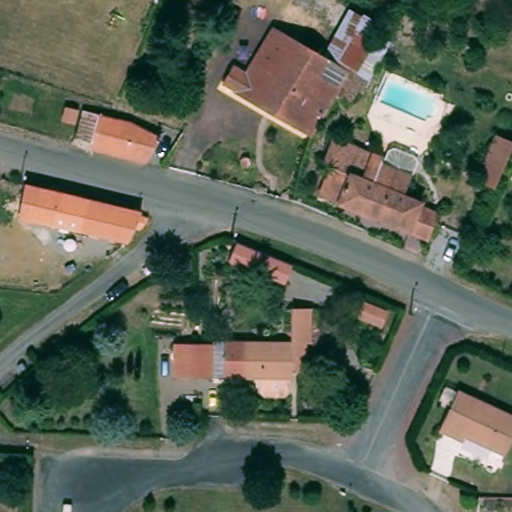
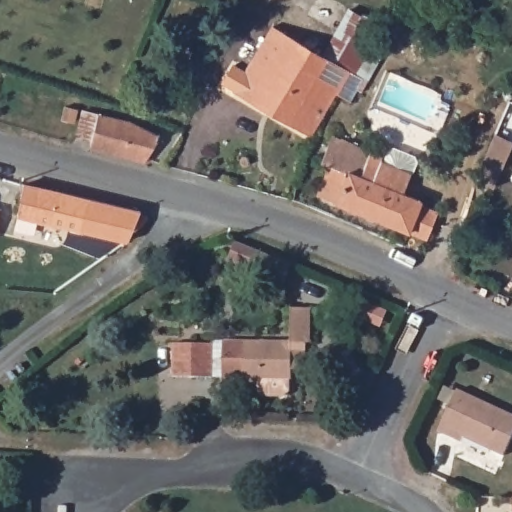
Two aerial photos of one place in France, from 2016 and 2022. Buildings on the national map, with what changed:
unchanged [(347,106),(330,96),(306,137),(220,82),(230,67),(241,73),(271,25),(321,56),(347,12),(375,28),(367,40),(372,42),(353,76),(360,80),(347,106)]
unchanged [(92,144),(77,139),(85,113),(100,117),(157,134),(174,139),(176,139),(175,145),(166,140),(154,169),(144,166),(90,150),(92,144)]
unchanged [(387,162),(390,157),(394,152),(400,151),(401,151),(419,159),(420,165),(407,195),(426,202),(425,205),(445,213),(431,241),(322,196),(333,166),(325,162),(337,137),(387,162)]
unchanged [(476,189),(483,170),(493,142),(512,149),(512,152),(501,179),(495,196),(476,189)]
unchanged [(79,232),(16,219),(25,187),(89,201),(79,232)]
unchanged [(89,201),(140,212),(139,214),(148,217),(145,224),(140,229),(135,227),(130,240),(127,242),(79,232),(89,201)]
unchanged [(236,242),(247,246),(292,266),(291,266),(284,285),(229,261),(236,242)]
unchanged [(290,341),(291,307),(310,307),(309,342),(305,342),(304,355),(304,356),(304,357),(304,358),(303,359),(303,360),(303,361),(302,362),(301,363),(300,365),(300,366),(298,366),(298,367),(296,367),(295,368),(293,368),(292,368),(291,369),(290,369),(290,377),(287,377),(287,390),(282,395),(262,395),(257,390),(257,377),(241,377),(241,340),(290,341)]
unchanged [(215,377),(195,376),(175,375),(176,341),(196,342),(216,342),(215,377)]
unchanged [(512,417),(512,433),(501,457),(452,435),(450,441),(433,432),(453,391),(512,417)]

